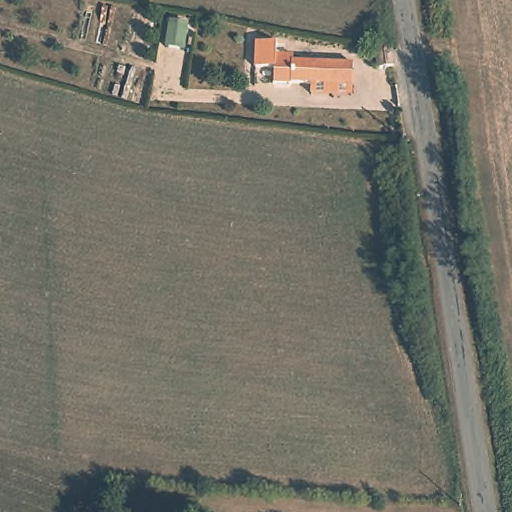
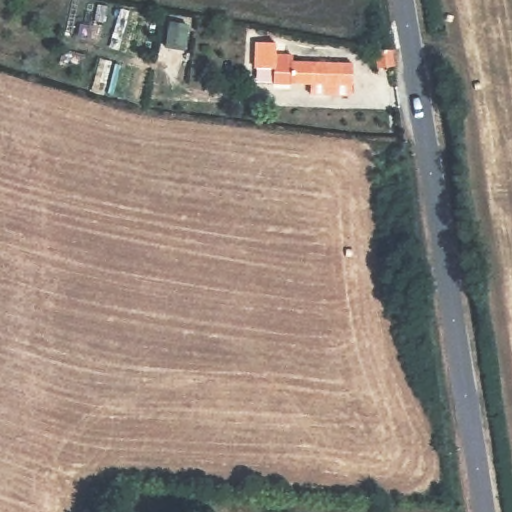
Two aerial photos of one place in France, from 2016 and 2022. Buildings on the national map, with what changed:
unchanged [(318,85),(319,77),(300,74),(284,71),(287,53),(268,49),(273,26),(291,30),(289,41),(305,45),(304,54),(362,66),(358,86),(357,85),(356,93),(318,85)]
unchanged [(387,69),(366,70),(365,51),(385,55),(387,69)]

